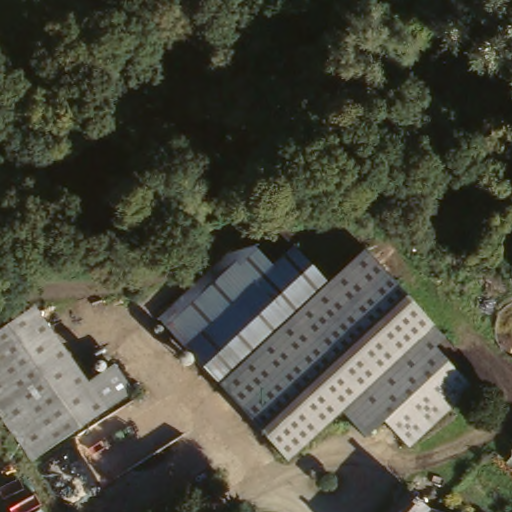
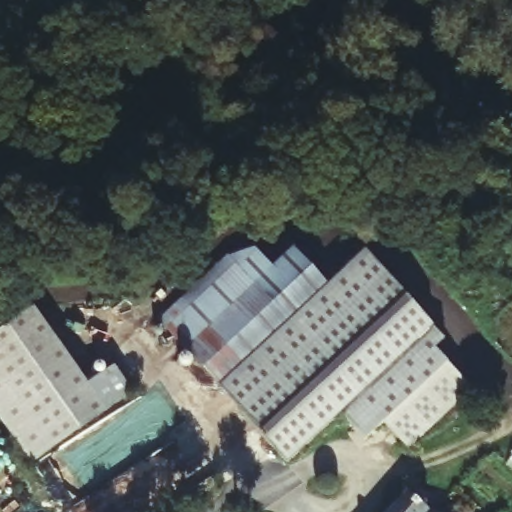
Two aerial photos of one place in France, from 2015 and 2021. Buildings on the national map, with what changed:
unchanged [(244,234),(269,263),(289,245),(322,286),(363,249),(444,338),(431,353),(468,389),(404,450),(379,426),(364,440),(341,415),(287,466),(221,385),(291,320),(226,251),(244,234)]
unchanged [(226,251),(291,320),(221,385),(154,316),(226,251)]
unchanged [(83,381),(109,361),(129,387),(34,460),(0,417),(0,329),(28,308),(83,381)]
unchanged [(407,489),(425,506),(428,509),(434,511),(435,512),(386,512),(407,489)]

